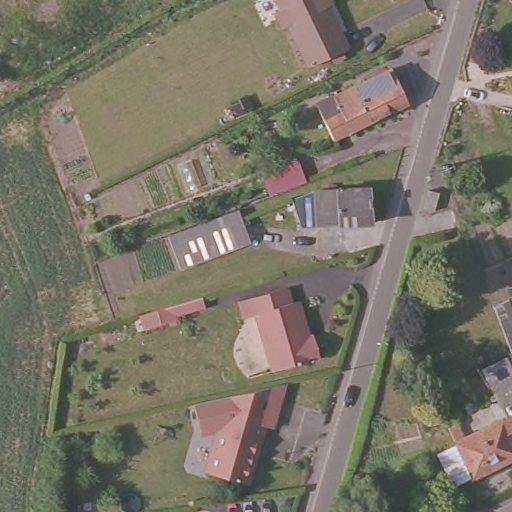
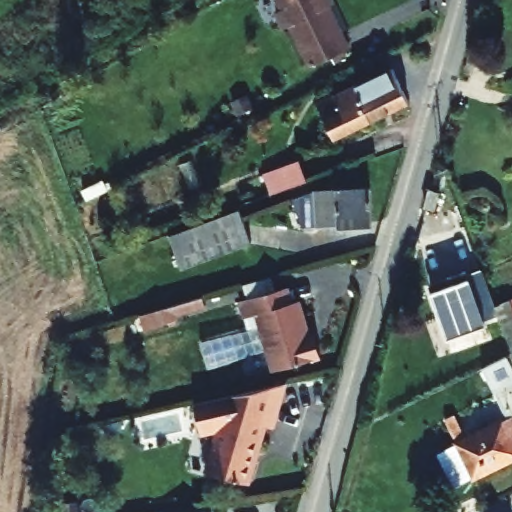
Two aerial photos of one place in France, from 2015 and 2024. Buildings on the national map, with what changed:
unchanged [(289,27),(283,30),(275,12),(282,8),(279,0),(334,0),(335,3),(331,5),(352,47),(345,50),(347,58),(335,62),(333,56),(309,67),(289,27)]
unchanged [(408,102),(335,133),(321,102),(393,70),(408,102)]
unchanged [(307,175),(313,190),(280,201),(275,186),(307,175)]
unchanged [(380,188),(382,220),(313,226),(303,201),(330,191),(380,188)]
unchanged [(463,214),(448,221),(438,197),(454,191),(463,214)]
unchanged [(254,237),(183,266),(172,230),(243,202),(254,237)]
new [(485,323),(449,337),(432,292),(468,278),(485,323)]
unchanged [(292,281),(297,297),(305,295),(313,330),(317,328),(323,350),(280,363),(262,307),(248,311),(245,295),(292,281)]
unchanged [(512,332),(498,298),(512,292),(512,332)]
unchanged [(215,318),(187,327),(188,332),(158,341),(152,323),(212,306),(215,318)]
unchanged [(459,443),(503,420),(501,416),(507,413),(495,390),(483,366),(507,355),(512,365),(512,429),(508,431),(512,440),(512,454),(473,472),(454,482),(438,454),(459,443)]
unchanged [(274,435),(269,433),(251,491),(210,477),(222,437),(205,442),(198,412),(287,391),(274,435)]

